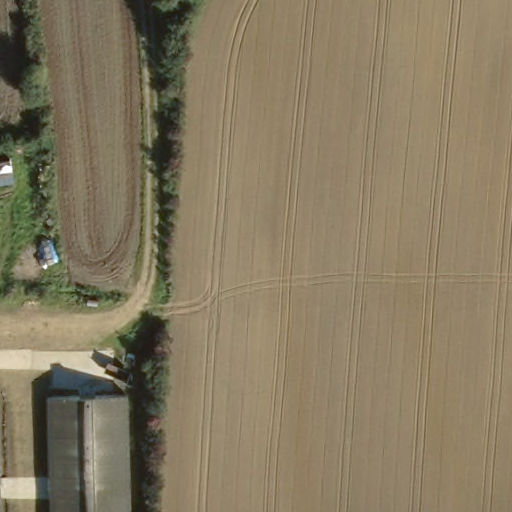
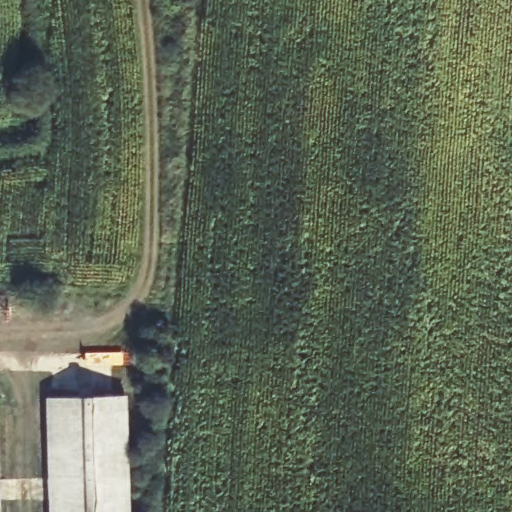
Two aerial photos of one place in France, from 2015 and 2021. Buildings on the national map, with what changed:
unchanged [(128,395),(130,512),(52,512),(50,396),(128,395)]
unchanged [(0,512),(0,436),(1,512),(0,512)]

